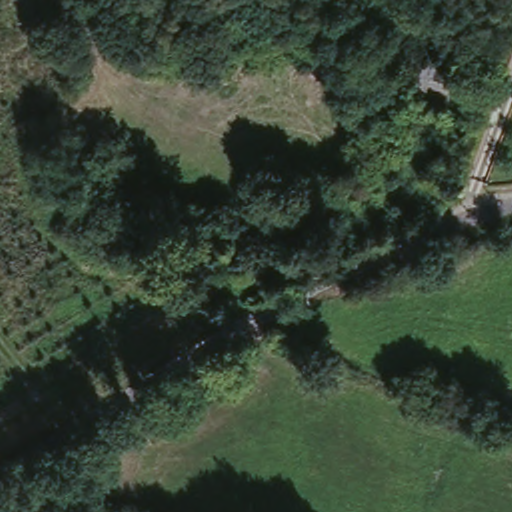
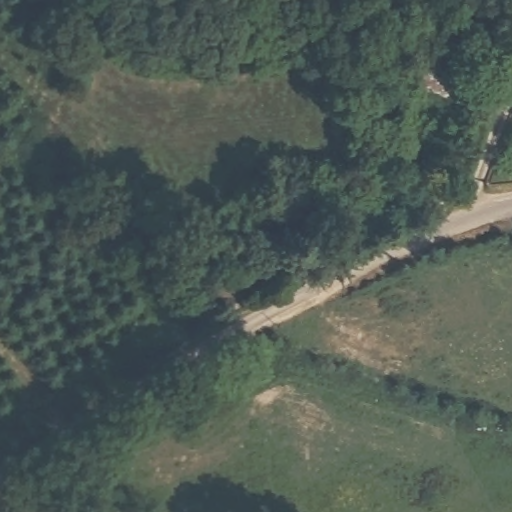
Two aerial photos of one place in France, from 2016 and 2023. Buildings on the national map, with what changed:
unchanged [(458,56),(455,69),(426,64),(428,50),(458,56)]
unchanged [(384,74),(338,66),(341,58),(364,61),(367,55),(388,58),(384,74)]
unchanged [(383,106),(382,116),(410,123),(408,131),(424,133),(420,156),(408,153),(409,147),(360,134),(367,102),(383,106)]
unchanged [(348,185),(364,184),(367,206),(348,207),(348,185)]

